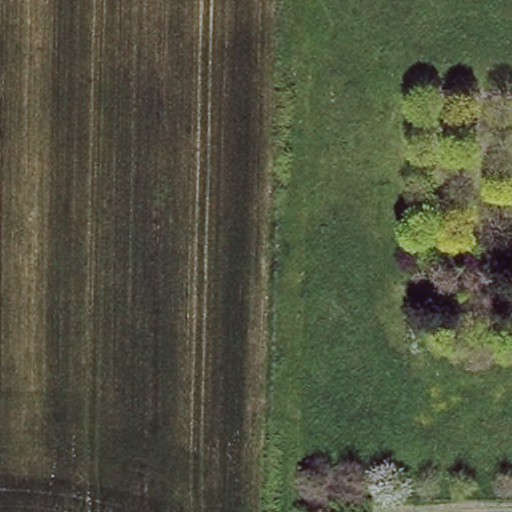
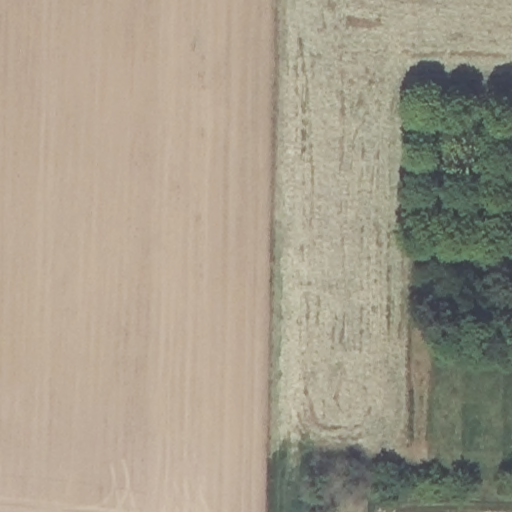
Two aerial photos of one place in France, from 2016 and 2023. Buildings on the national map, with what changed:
[]

